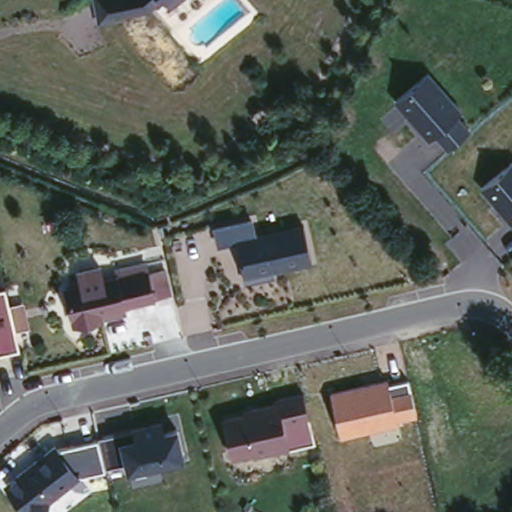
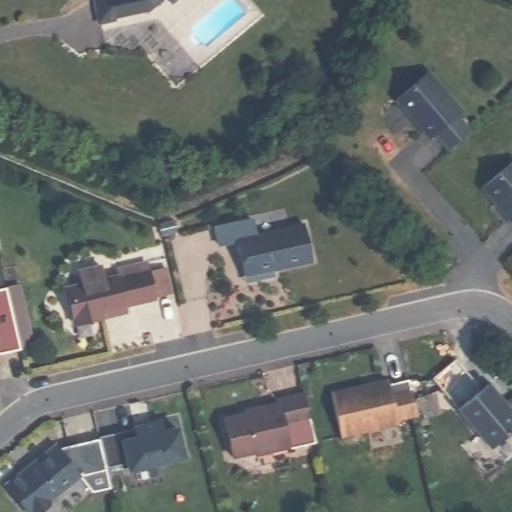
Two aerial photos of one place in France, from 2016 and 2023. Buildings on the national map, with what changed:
unchanged [(103,13),(99,0),(156,0),(152,3),(103,13)]
unchanged [(436,136),(431,140),(397,100),(429,70),(464,110),(461,112),(474,131),(449,150),(436,136)]
unchanged [(483,189),(512,165),(512,224),(483,189)]
unchanged [(254,218),(258,233),(305,223),(314,261),(275,271),(277,275),(247,282),(237,242),(219,247),(214,228),(254,218)]
unchanged [(174,293),(157,297),(159,299),(129,307),(130,313),(74,327),(64,286),(81,283),(80,270),(103,264),(105,276),(120,274),(119,267),(149,260),(152,271),(168,267),(174,293)]
unchanged [(388,375),(390,382),(410,378),(419,416),(401,420),(401,423),(340,438),(328,388),(388,375)]
new [(490,380),(512,405),(506,410),(512,418),(512,443),(496,456),(455,407),(490,380)]
unchanged [(248,412),(247,408),(275,401),(275,397),(305,391),(317,442),(257,456),(257,453),(232,458),(224,418),(248,412)]
unchanged [(98,438),(134,430),(133,427),(163,419),(166,429),(179,426),(187,462),(129,474),(126,462),(105,467),(99,440),(98,438)]
unchanged [(58,445),(60,448),(99,440),(105,467),(106,471),(83,476),(41,512),(27,512),(6,486),(58,445)]

